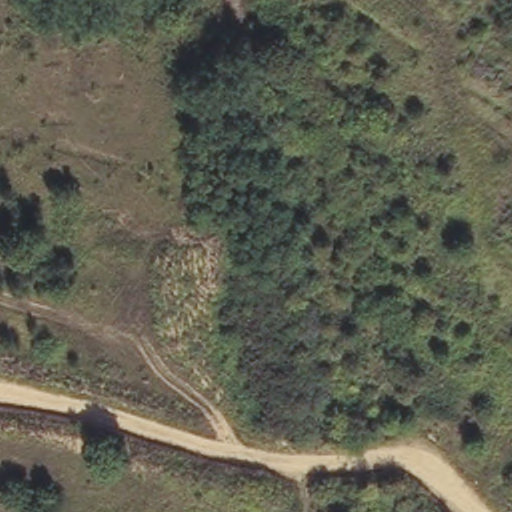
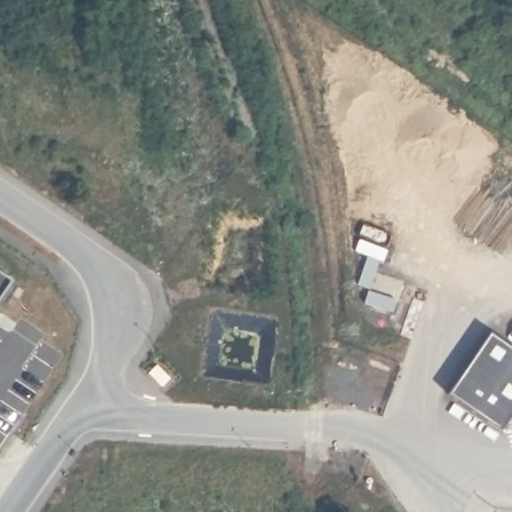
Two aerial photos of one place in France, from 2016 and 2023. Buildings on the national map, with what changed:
new [(16,271),(0,294),(0,260),(16,271)]
new [(512,411),(499,431),(447,399),(494,328),(512,341),(512,411)]

